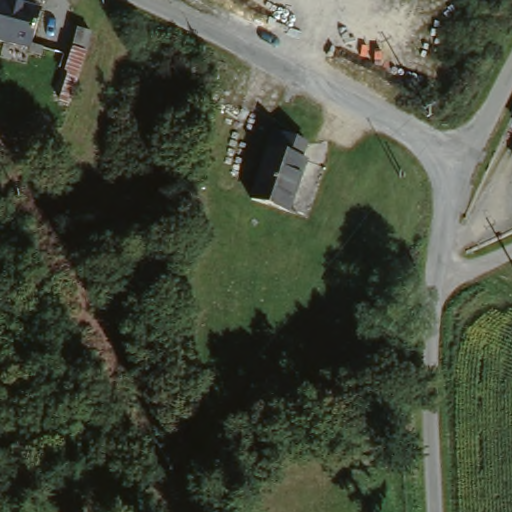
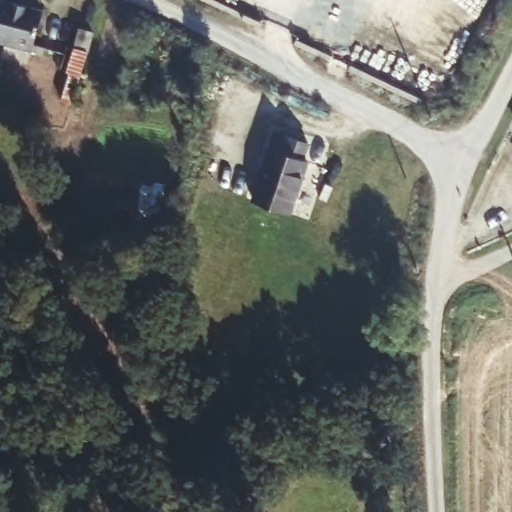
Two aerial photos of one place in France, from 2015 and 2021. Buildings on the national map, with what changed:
unchanged [(35,52),(0,42),(0,0),(4,0),(45,12),(35,52)]
unchanged [(79,121),(71,116),(78,94),(71,91),(92,20),(106,24),(89,87),(86,97),(84,105),(79,121)]
unchanged [(258,196),(274,143),(281,147),(286,133),(310,141),(304,155),(314,160),(297,210),(258,196)]

